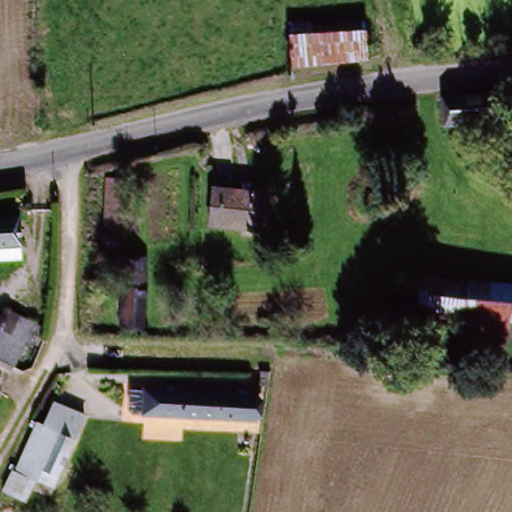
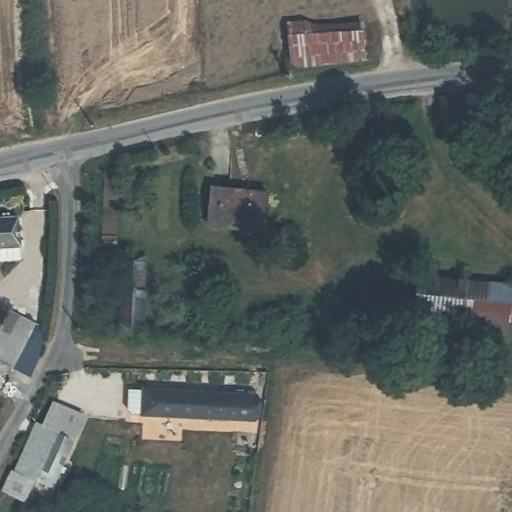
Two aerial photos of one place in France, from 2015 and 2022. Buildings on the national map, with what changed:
unchanged [(286,22),(316,20),(317,27),(366,20),(371,64),(292,70),(286,22)]
unchanged [(441,124),(440,95),(444,95),(504,91),(504,105),(512,106),(512,120),(504,120),(441,124)]
unchanged [(263,226),(211,224),(213,185),(265,189),(263,226)]
unchanged [(24,245),(21,245),(21,260),(0,260),(0,220),(24,218),(24,245)]
unchanged [(123,325),(128,268),(128,258),(148,259),(146,269),(141,325),(123,325)]
unchanged [(411,275),(512,279),(512,316),(507,316),(462,312),(409,307),(411,275)]
unchanged [(9,310),(35,325),(44,329),(39,338),(33,350),(23,346),(13,367),(0,393),(0,328),(9,310)]
unchanged [(507,316),(507,343),(459,341),(462,312),(507,316)]
unchanged [(266,422),(150,416),(144,412),(146,390),(268,397),(266,422)]
unchanged [(1,487),(11,468),(14,470),(37,420),(43,423),(53,401),(83,415),(49,487),(36,480),(25,498),(1,487)]

